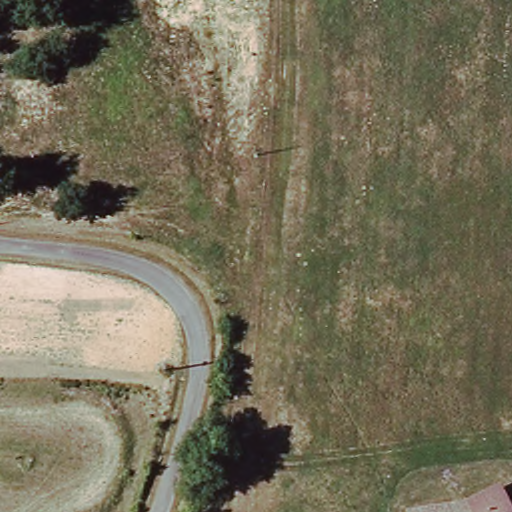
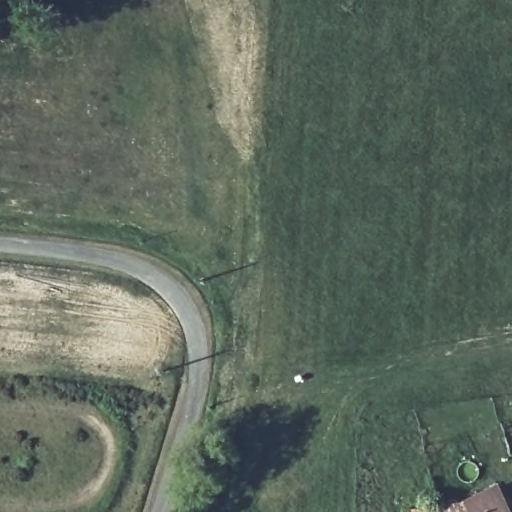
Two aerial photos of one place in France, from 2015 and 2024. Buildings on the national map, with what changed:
unchanged [(462,505),(493,491),(498,489),(509,512),(437,512),(462,505)]

